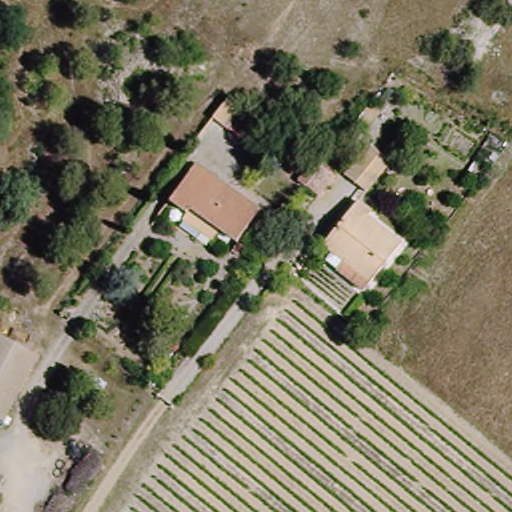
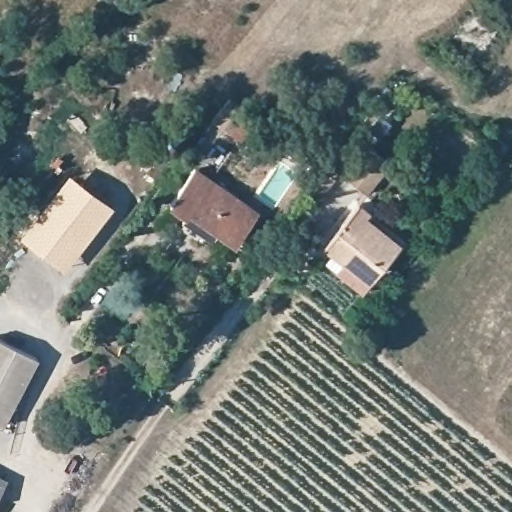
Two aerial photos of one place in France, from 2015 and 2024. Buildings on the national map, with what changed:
unchanged [(244,113),(229,135),(213,124),(229,103),(244,113)]
unchanged [(345,177),(369,148),(391,166),(368,195),(345,177)]
unchanged [(211,245),(181,223),(186,216),(189,218),(171,205),(199,168),(256,209),(236,237),(223,228),(217,235),(211,245)]
new [(69,172),(114,208),(64,271),(19,236),(69,172)]
unchanged [(339,270),(349,258),(324,239),(358,197),(376,212),(372,216),(404,242),(374,280),(365,291),(339,270)]
unchanged [(0,338),(39,359),(4,425),(0,423),(0,338)]
unchanged [(0,489),(0,481),(3,482),(0,489)]

